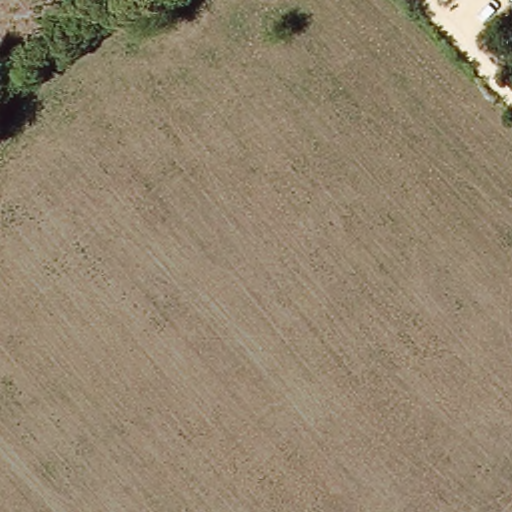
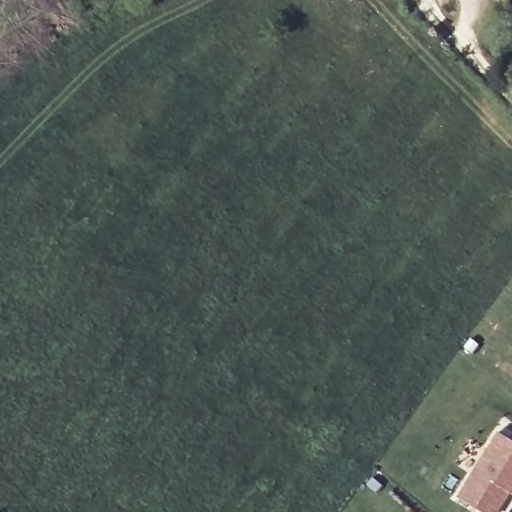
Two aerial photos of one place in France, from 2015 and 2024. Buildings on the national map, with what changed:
new [(496,512),(479,512),(455,497),(495,432),(512,443),(512,494),(509,492),(496,512)]

